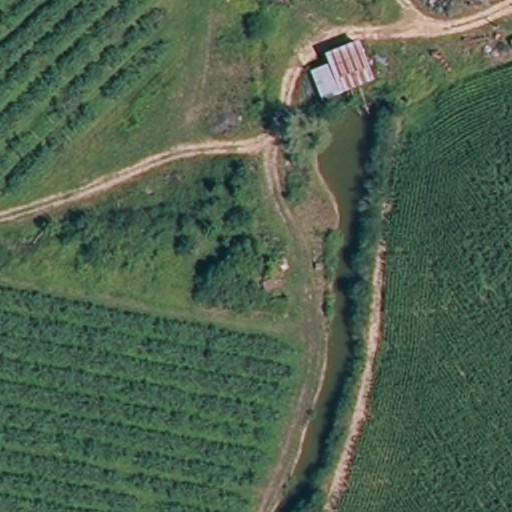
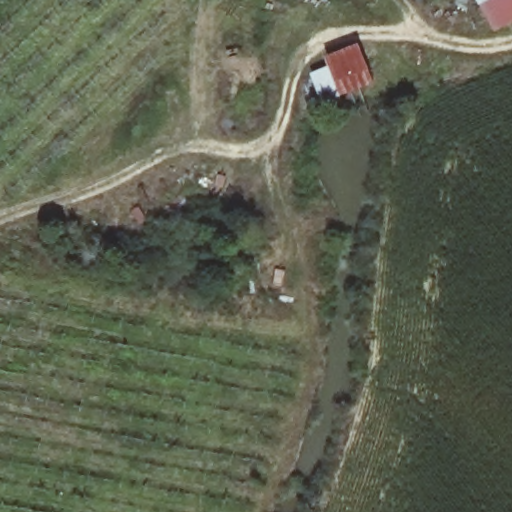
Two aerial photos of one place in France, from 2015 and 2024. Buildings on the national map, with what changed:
new [(512,26),(496,34),(481,7),(488,4),(495,0),(512,0),(512,26)]
unchanged [(486,0),(495,0),(488,4),(486,0)]
unchanged [(321,75),(337,70),(334,59),(369,44),(383,84),(332,107),(321,75)]

